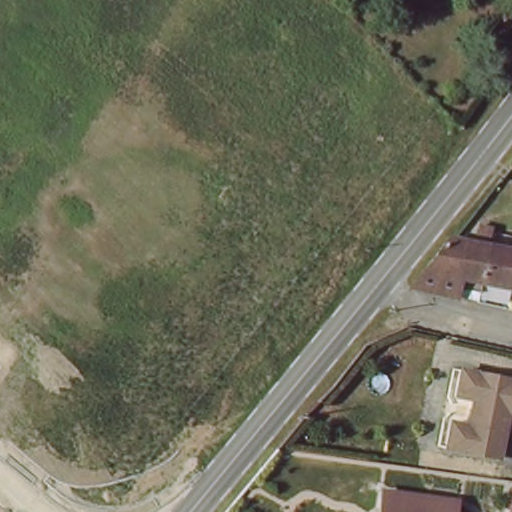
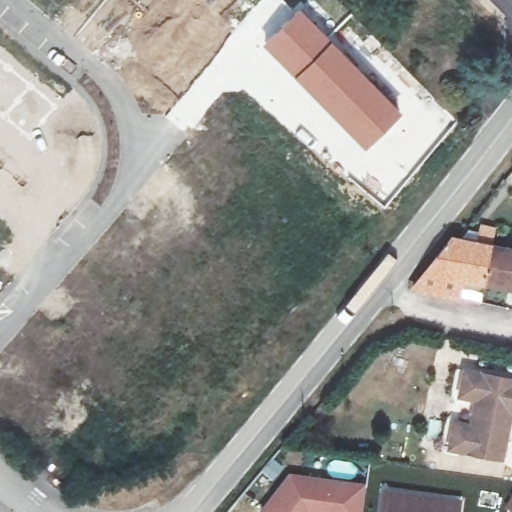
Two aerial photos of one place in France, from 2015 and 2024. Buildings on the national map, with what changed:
new [(300,7),(331,38),(294,76),(263,44),(300,7)]
new [(331,38),(403,112),(365,149),(294,76),(331,38)]
new [(0,65),(0,60),(3,62),(0,65)]
unchanged [(415,291),(459,233),(472,236),(459,300),(415,291)]
unchanged [(489,306),(459,300),(472,236),(502,242),(494,280),(489,306)]
unchanged [(512,240),(512,243),(509,243),(512,240)]
unchanged [(494,280),(502,242),(509,243),(512,243),(512,283),(494,280)]
unchanged [(449,468),(475,356),(512,366),(512,477),(449,468)]
new [(265,511),(293,477),(368,487),(364,512),(266,512),(265,511)]
unchanged [(468,512),(387,512),(391,490),(471,500),(468,512)]

